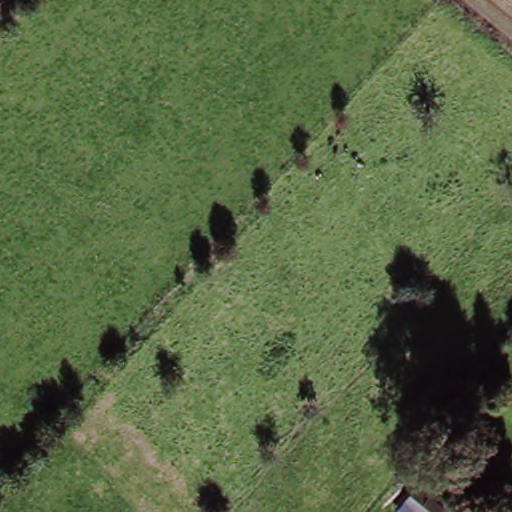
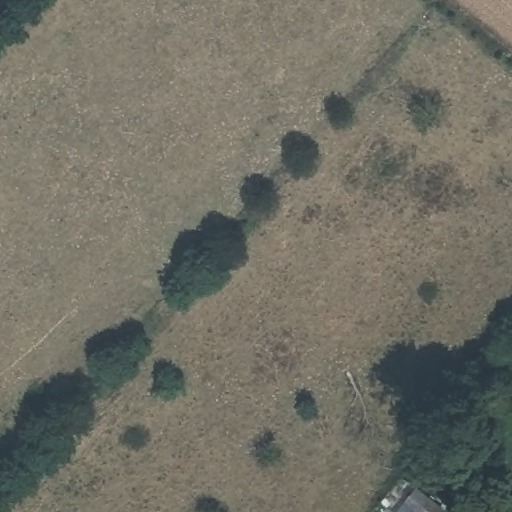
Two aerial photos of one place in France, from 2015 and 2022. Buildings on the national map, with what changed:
unchanged [(408,512),(416,501),(429,512),(408,512)]

